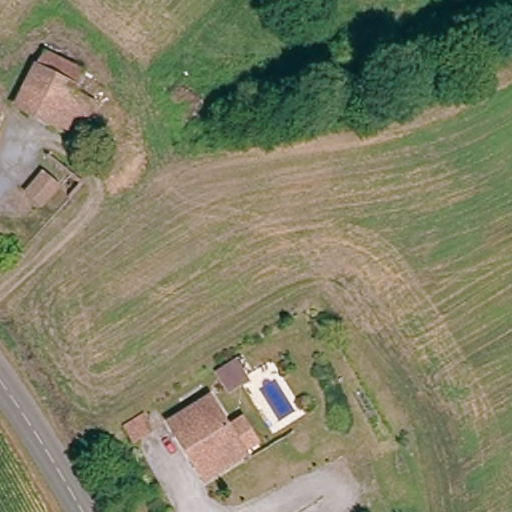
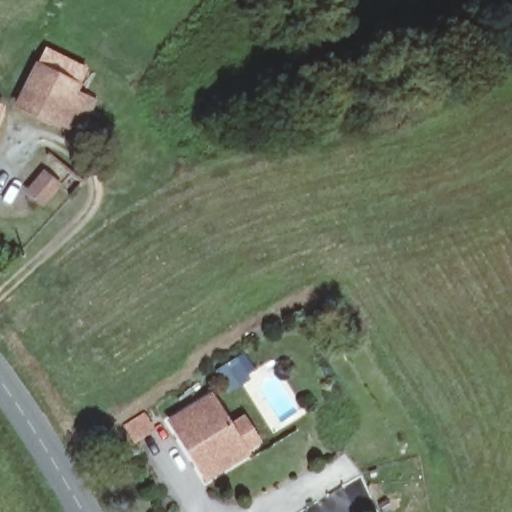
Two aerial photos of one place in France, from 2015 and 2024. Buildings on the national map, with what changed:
unchanged [(83,143),(61,131),(13,107),(34,69),(46,51),(91,69),(84,91),(104,101),(83,143)]
unchanged [(34,162),(51,175),(37,195),(20,181),(34,162)]
unchanged [(241,360),(252,377),(234,390),(222,373),(241,360)]
unchanged [(178,425),(217,399),(254,455),(214,482),(202,465),(188,442),(178,425)]

